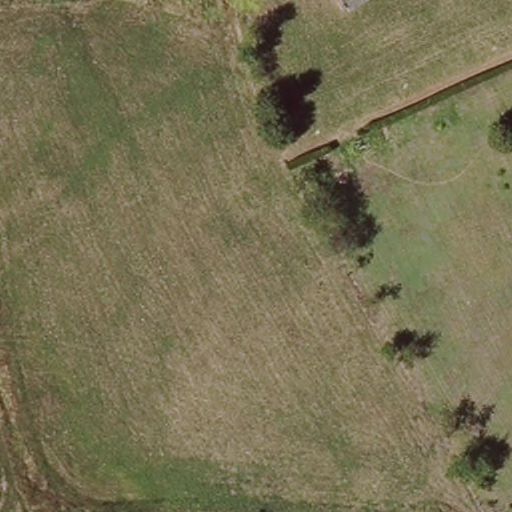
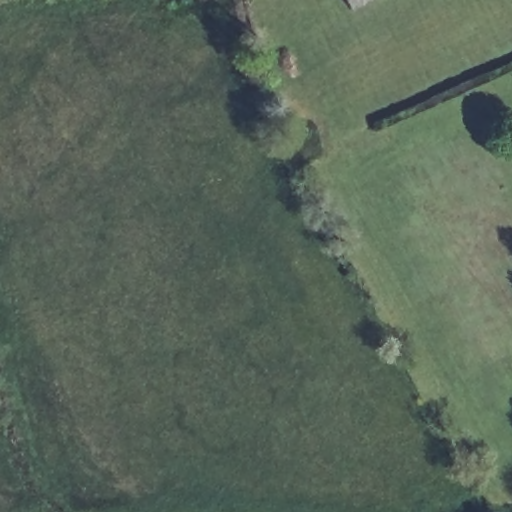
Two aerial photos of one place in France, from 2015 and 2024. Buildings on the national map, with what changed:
unchanged [(352,10),(346,0),(368,0),(352,10)]

